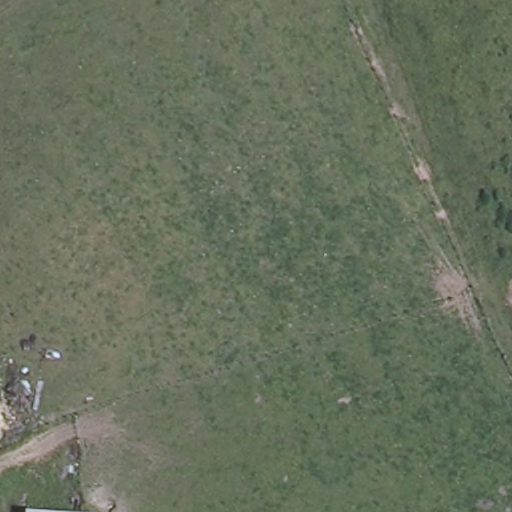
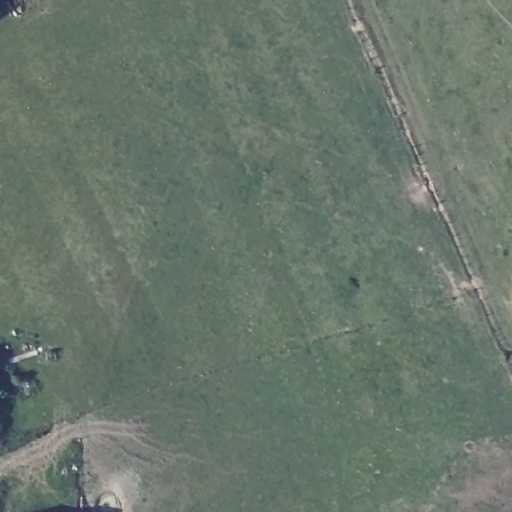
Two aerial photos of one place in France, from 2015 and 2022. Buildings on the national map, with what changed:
unchanged [(23,508),(68,512),(23,512),(23,508)]

